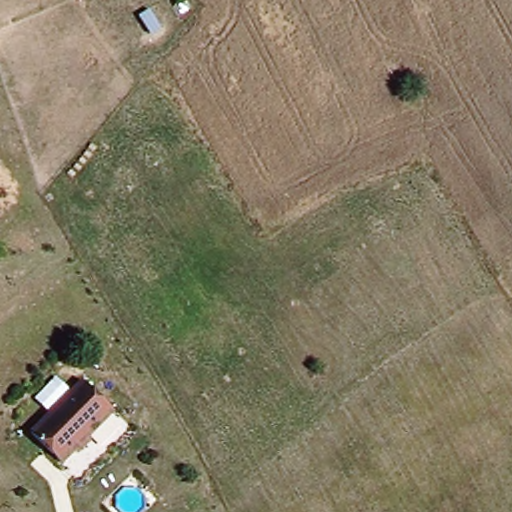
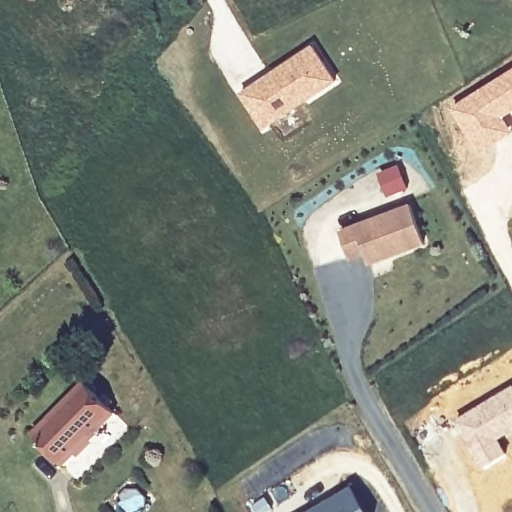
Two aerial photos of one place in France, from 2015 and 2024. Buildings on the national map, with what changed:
new [(313,43),(339,80),(263,130),(238,94),(313,43)]
new [(482,86),(512,67),(512,114),(508,117),(512,124),(512,131),(481,152),(449,109),(482,86)]
new [(398,164),(408,188),(387,197),(376,174),(398,164)]
new [(414,203),(427,242),(373,262),(369,251),(354,257),(344,229),(414,203)]
unchanged [(35,430),(88,380),(116,410),(64,460),(35,430)]
new [(357,485),(369,506),(358,512),(308,512),(357,485)]

